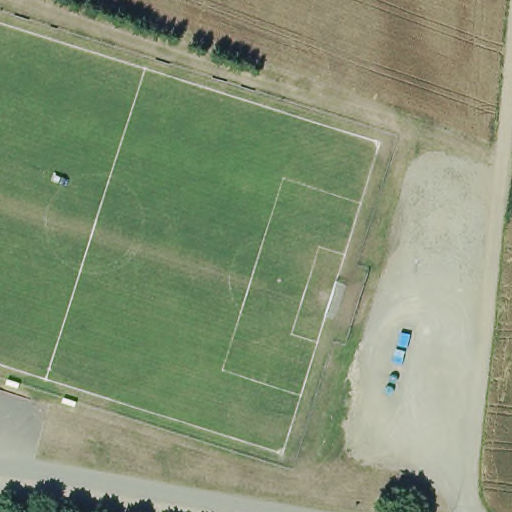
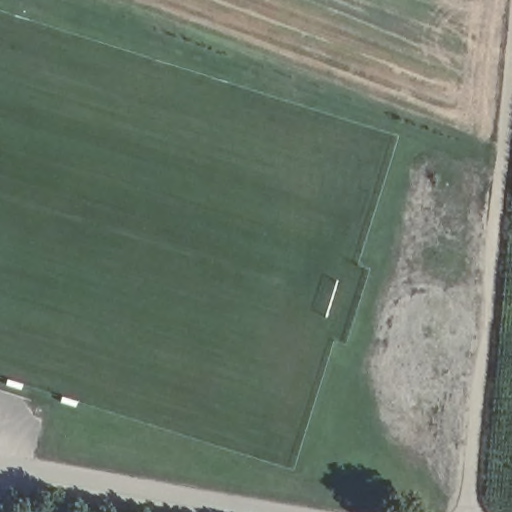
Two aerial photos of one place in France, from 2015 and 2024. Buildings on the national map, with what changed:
[]

